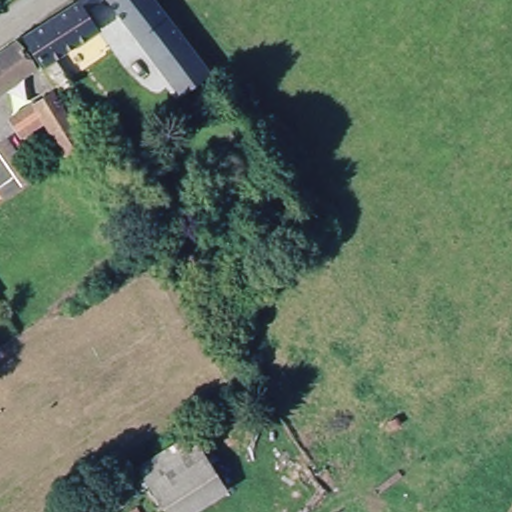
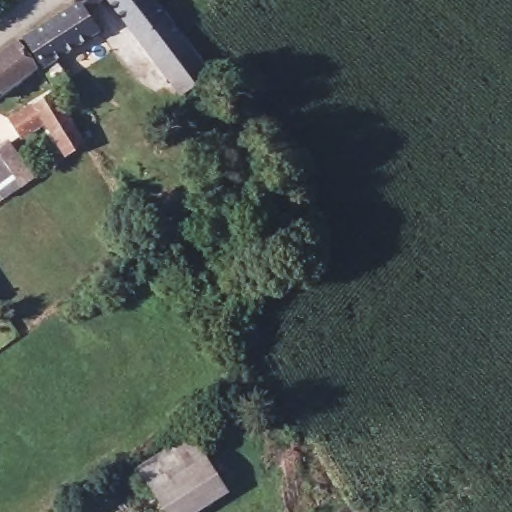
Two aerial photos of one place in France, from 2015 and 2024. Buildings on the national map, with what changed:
unchanged [(166,64),(113,0),(158,0),(210,68),(185,87),(166,64)]
unchanged [(57,86),(27,40),(79,1),(99,30),(71,51),(100,90),(73,110),(57,86)]
unchanged [(38,71),(0,102),(0,61),(19,46),(38,71)]
unchanged [(74,156),(48,116),(25,134),(15,120),(53,89),(91,144),(74,156)]
unchanged [(24,190),(16,179),(0,193),(0,147),(9,139),(39,175),(24,190)]
unchanged [(232,494),(204,512),(169,512),(133,465),(194,434),(232,494)]

